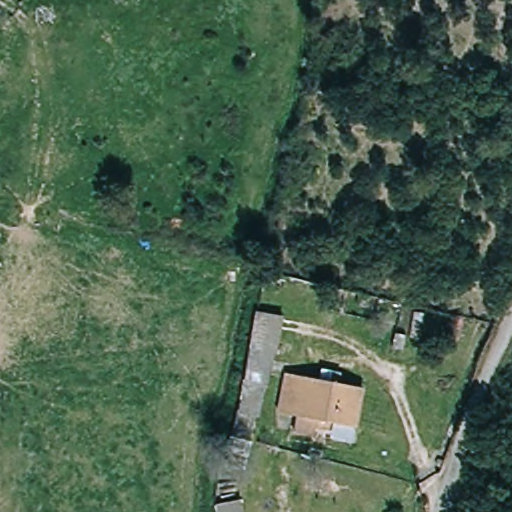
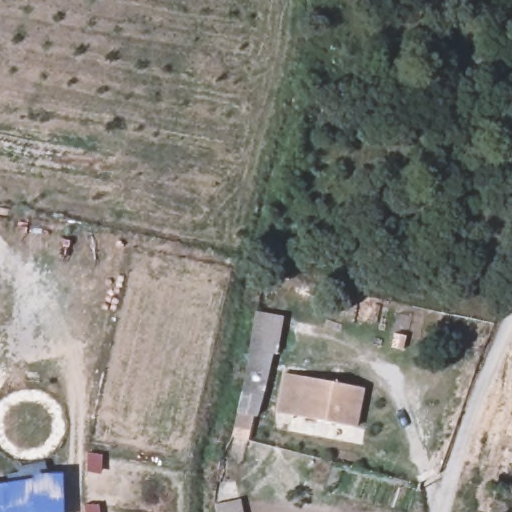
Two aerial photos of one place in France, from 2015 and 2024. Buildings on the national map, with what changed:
unchanged [(285,267),(280,283),(263,278),(266,263),(285,267)]
unchanged [(352,284),(349,300),(324,294),(327,278),(352,284)]
unchanged [(283,323),(259,421),(255,420),(252,435),(233,431),(258,318),(283,323)]
unchanged [(408,330),(405,349),(392,347),(396,328),(408,330)]
unchanged [(362,391),(355,428),(318,419),(313,437),(292,433),(295,417),(278,413),(286,374),(362,391)]
new [(30,479),(31,476),(61,473),(63,512),(0,512),(0,483),(30,479)]
unchanged [(240,500),(243,512),(217,512),(215,504),(240,500)]

